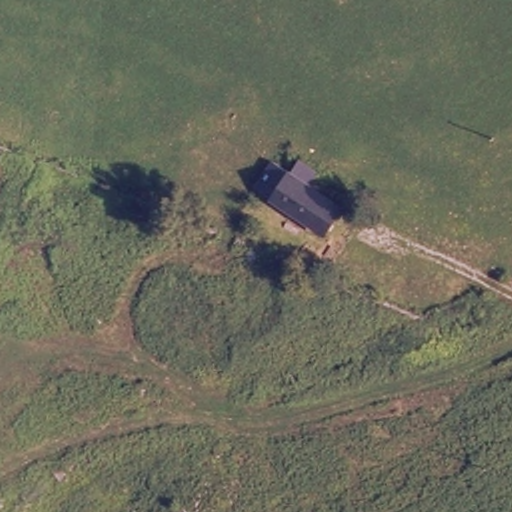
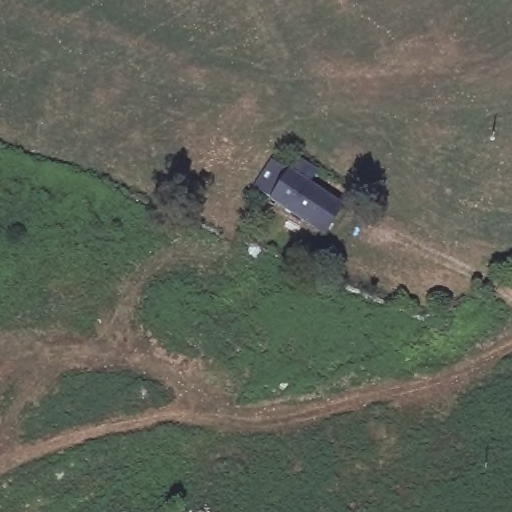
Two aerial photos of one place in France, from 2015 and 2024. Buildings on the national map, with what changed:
unchanged [(327,229),(259,186),(276,159),(289,167),(298,154),(319,168),(310,181),(344,201),(327,229)]

